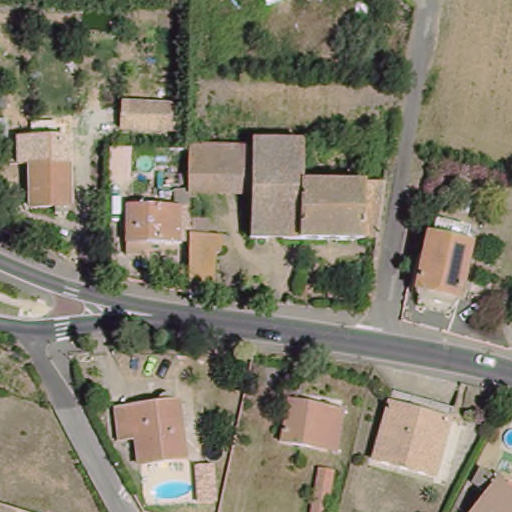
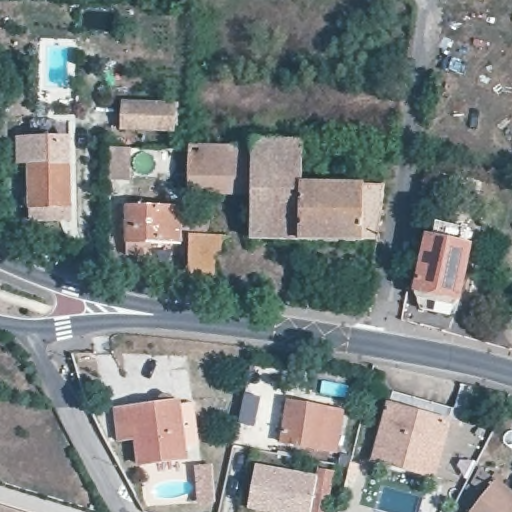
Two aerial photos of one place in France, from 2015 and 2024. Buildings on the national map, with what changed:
unchanged [(113,124),(114,99),(164,100),(164,125),(113,124)]
demolished [(101,172),(101,144),(113,144),(113,172),(101,172)]
unchanged [(248,144),(302,144),(302,150),(306,150),(306,157),(302,157),(302,184),(384,187),(378,237),(364,237),(364,240),(250,235),(249,194),(248,149),(248,144)]
unchanged [(188,189),(189,150),(189,147),(248,149),(249,194),(188,194),(188,189)]
unchanged [(189,150),(188,189),(161,189),(161,150),(189,150)]
unchanged [(115,184),(116,155),(128,155),(127,184),(115,184)]
unchanged [(68,207),(32,206),(31,162),(69,164),(68,207)]
unchanged [(203,236),(218,237),(219,252),(213,252),(212,296),(187,292),(188,242),(176,242),(173,246),(144,245),(144,256),(124,256),(123,245),(124,207),(141,208),(141,193),(160,194),(159,209),(176,210),(176,203),(188,197),(188,217),(203,218),(203,236)]
unchanged [(426,307),(421,287),(428,236),(432,236),(435,219),(469,227),(465,244),(469,245),(459,297),(446,311),(426,307)]
unchanged [(148,403),(161,402),(164,401),(166,401),(169,401),(171,402),(172,405),(178,404),(184,462),(138,467),(136,441),(121,441),(117,411),(149,408),(148,403)]
unchanged [(373,469),(387,413),(391,401),(453,417),(449,432),(434,486),(373,469)]
unchanged [(334,452),(281,442),(288,403),(341,413),(334,452)]
new [(309,512),(268,512),(251,510),(259,465),(316,475),(309,512)]
unchanged [(483,492),(469,481),(479,466),(512,494),(512,512),(469,512),(483,492)]
unchanged [(318,470),(334,473),(325,512),(309,512),(318,470)]
unchanged [(0,508),(15,512),(0,512),(0,508)]

